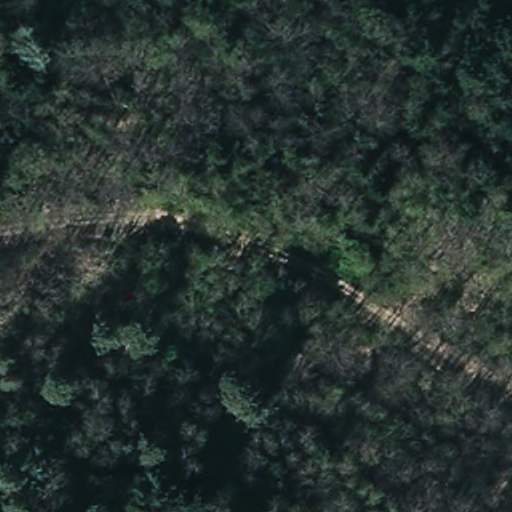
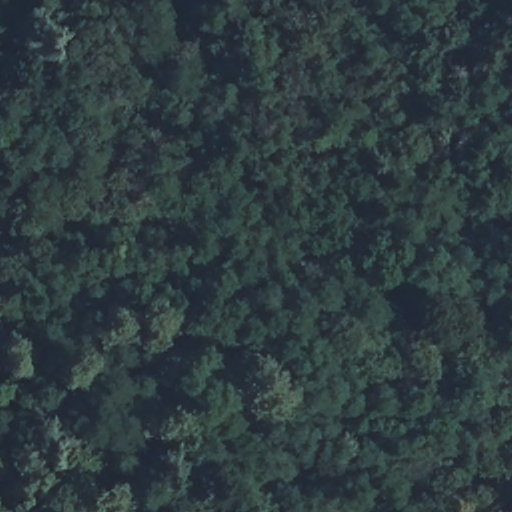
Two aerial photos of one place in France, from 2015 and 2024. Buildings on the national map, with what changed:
[]

